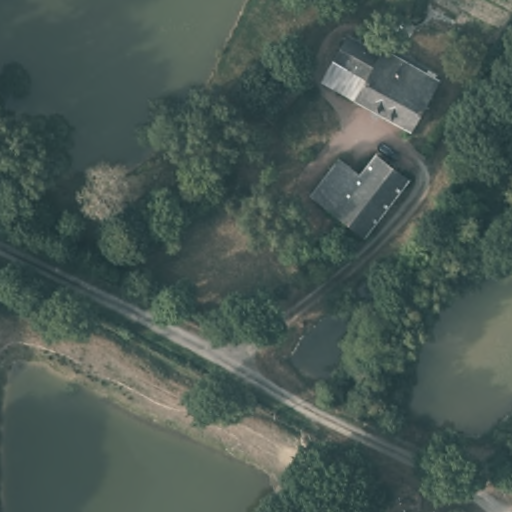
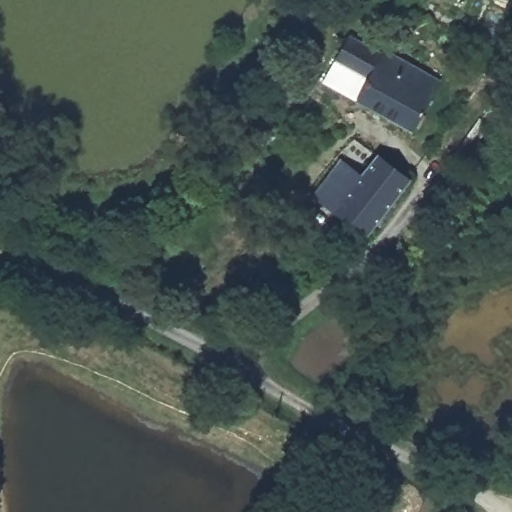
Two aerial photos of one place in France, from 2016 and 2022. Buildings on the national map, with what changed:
unchanged [(413,127),(326,77),(350,31),(384,49),(386,45),(442,76),(413,127)]
unchanged [(315,192),(339,156),(363,173),(379,149),(411,173),(368,229),(315,192)]

